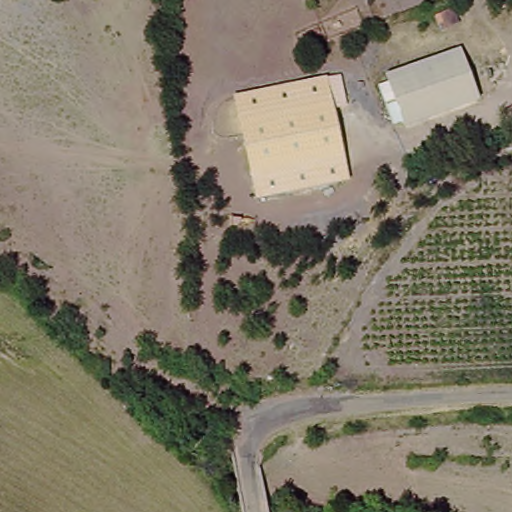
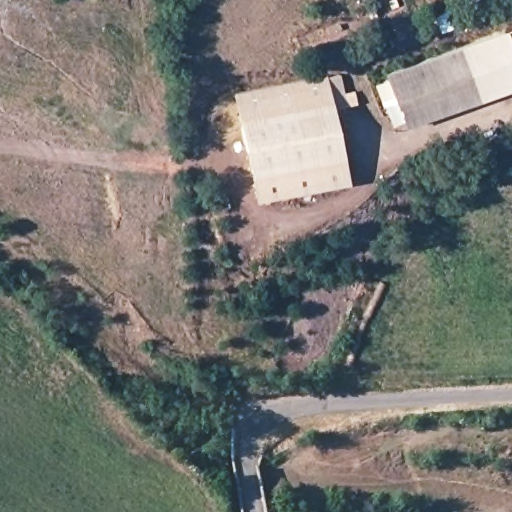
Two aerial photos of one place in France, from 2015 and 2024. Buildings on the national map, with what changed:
new [(512,43),(512,90),(481,102),(463,48),(508,32),(512,43)]
unchanged [(463,48),(481,102),(404,129),(388,70),(463,48)]
unchanged [(254,201),(235,94),(327,75),(328,78),(341,75),(347,107),(334,109),(349,183),(254,201)]

